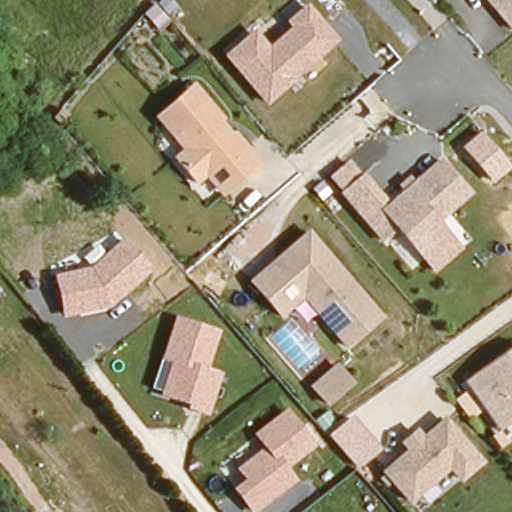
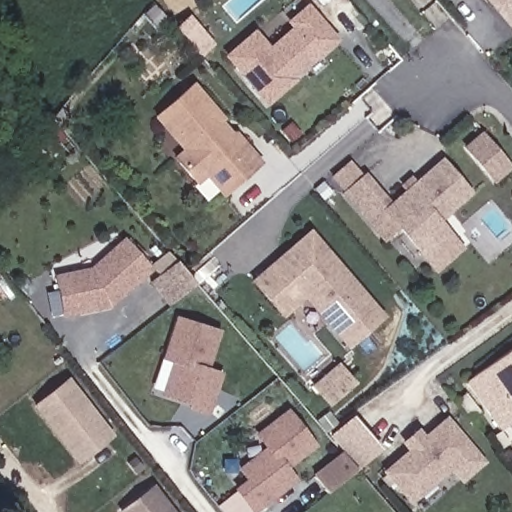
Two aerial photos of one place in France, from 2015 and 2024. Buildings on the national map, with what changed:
unchanged [(510,29),(485,0),(512,0),(512,27),(510,29)]
unchanged [(255,29),(270,44),(291,27),(286,20),(308,2),(341,40),(266,105),(224,56),(255,29)]
unchanged [(155,118),(194,82),(225,117),(224,122),(231,129),(237,130),(264,160),(223,196),(206,178),(198,185),(172,157),(180,149),(155,118)]
unchanged [(471,192),(438,221),(450,235),(464,249),(437,275),(421,256),(398,229),(381,208),(391,200),(440,155),(471,192)]
unchanged [(381,208),(398,229),(383,241),(340,193),(364,172),(391,200),(381,208)]
unchanged [(388,317),(349,349),(307,299),(283,318),(250,280),(311,229),(388,317)]
unchanged [(153,270),(110,308),(62,318),(53,273),(90,266),(123,236),(153,270)]
unchanged [(211,367),(223,372),(210,415),(184,407),(186,402),(161,395),(170,361),(161,358),(175,313),(222,330),(211,367)]
unchanged [(499,429),(463,381),(512,347),(512,420),(499,429)]
unchanged [(354,383),(327,405),(311,385),(338,362),(354,383)]
new [(114,436),(79,463),(33,405),(68,377),(114,436)]
unchanged [(316,445),(288,467),(298,481),(258,512),(250,512),(233,488),(245,480),(237,469),(265,447),(255,432),(287,408),(316,445)]
unchanged [(358,468),(327,435),(351,415),(381,448),(358,468)]
unchanged [(483,462),(459,482),(447,470),(408,502),(384,471),(405,450),(399,442),(415,427),(422,435),(445,416),(483,462)]
new [(116,511),(151,482),(175,512),(117,512),(116,511)]

